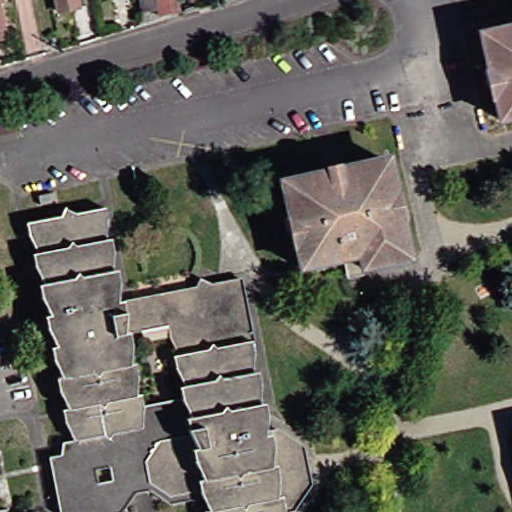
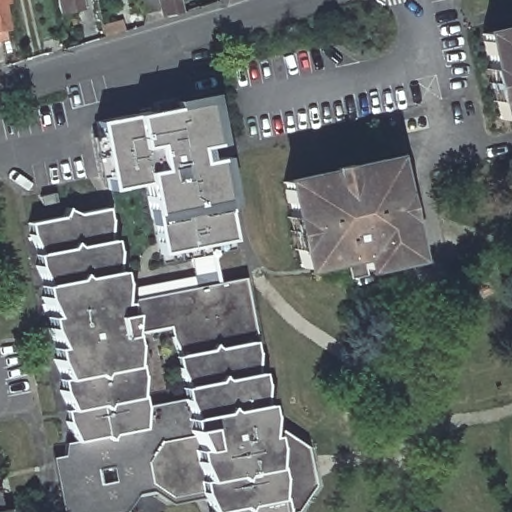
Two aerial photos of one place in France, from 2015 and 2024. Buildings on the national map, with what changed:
unchanged [(50,0),(70,0),(71,7),(52,10),(50,0)]
unchanged [(152,1),(136,5),(135,0),(173,0),(173,4),(153,8),(152,1)]
unchanged [(491,98),(486,99),(478,65),(483,64),(475,29),(512,21),(512,111),(495,115),(491,98)]
new [(218,143),(202,146),(204,160),(221,157),(229,205),(224,207),(230,239),(159,251),(152,217),(145,182),(108,190),(96,124),(130,117),(169,108),(169,101),(208,94),(218,143)]
unchanged [(340,258),(297,267),(292,246),(286,248),(278,215),(284,213),(276,180),(320,170),(324,187),(340,183),(336,166),(379,156),(387,192),(392,191),(398,219),(407,257),(359,268),(361,279),(346,283),(340,258)]
unchanged [(62,440),(53,424),(52,425),(49,411),(57,410),(46,394),(43,380),(51,378),(41,362),(38,351),(45,349),(34,330),(32,318),(39,316),(29,300),(27,287),(34,286),(24,269),(22,256),(29,255),(19,238),(18,237),(17,226),(24,225),(87,213),(95,211),(98,223),(92,243),(101,242),(103,254),(98,274),(106,273),(109,285),(104,305),(187,290),(191,278),(201,287),(223,283),(234,281),(245,342),(242,342),(244,354),(241,377),(248,375),(250,386),(247,407),(253,406),(255,416),(253,430),(266,428),(274,508),(271,509),(271,512),(190,512),(189,509),(197,507),(188,493),(161,498),(138,478),(121,481),(119,484),(122,503),(75,512),(61,512),(49,456),(54,456),(55,442),(62,440)]
unchanged [(297,445),(304,477),(281,507),(274,508),(266,428),(270,427),(297,445)]
unchanged [(1,512),(0,512),(0,508),(1,512)]

